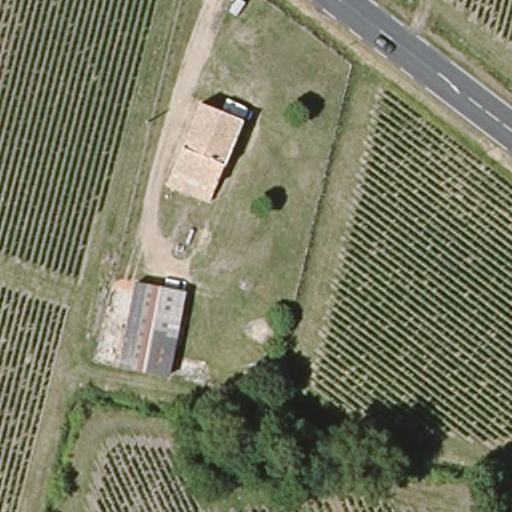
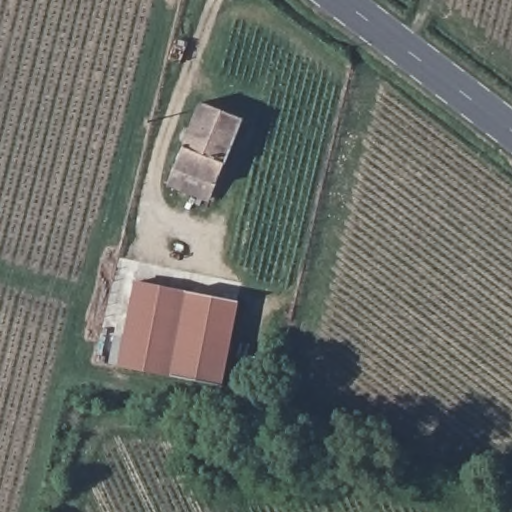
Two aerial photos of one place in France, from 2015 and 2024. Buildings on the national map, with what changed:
unchanged [(172,182),(192,107),(234,119),(215,192),(172,182)]
unchanged [(135,283),(184,293),(167,378),(118,368),(135,283)]
new [(238,302),(222,386),(167,378),(184,293),(238,302)]

